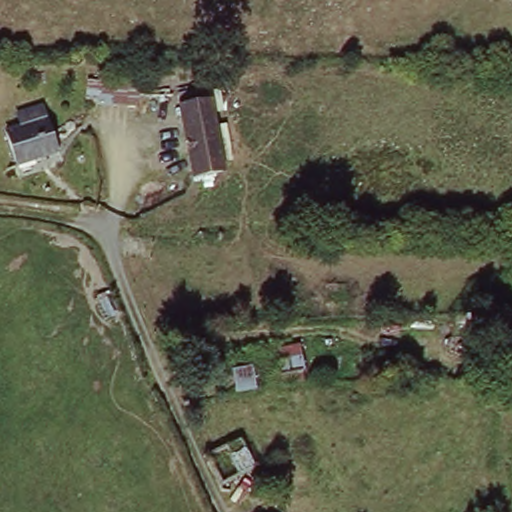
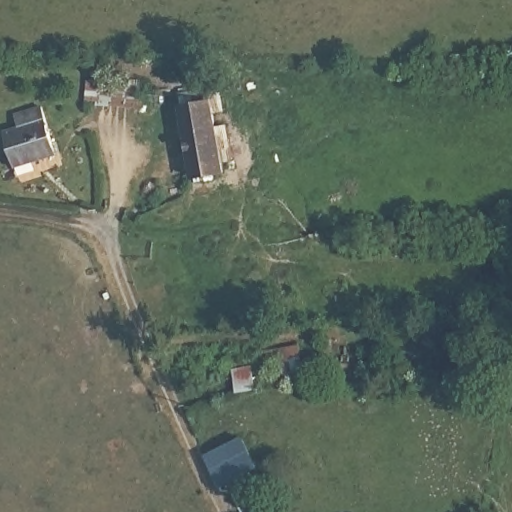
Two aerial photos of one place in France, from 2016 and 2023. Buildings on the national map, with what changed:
unchanged [(142,108),(83,103),(84,79),(146,81),(142,108)]
unchanged [(186,96),(217,94),(224,178),(193,180),(186,96)]
unchanged [(32,123),(27,110),(42,103),(48,118),(52,116),(67,151),(64,153),(30,167),(12,131),(32,123)]
new [(245,449),(255,471),(219,487),(204,455),(227,444),(240,440),(245,449)]

